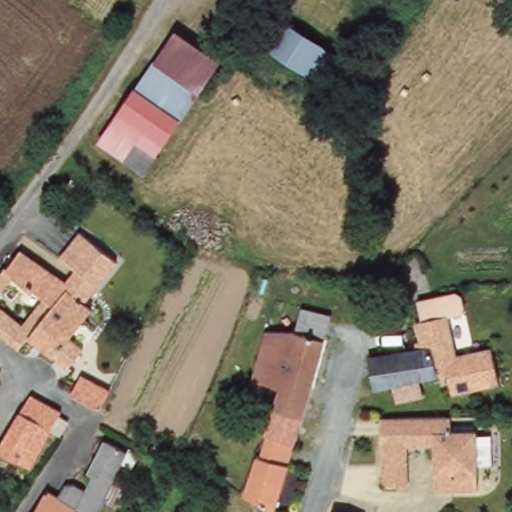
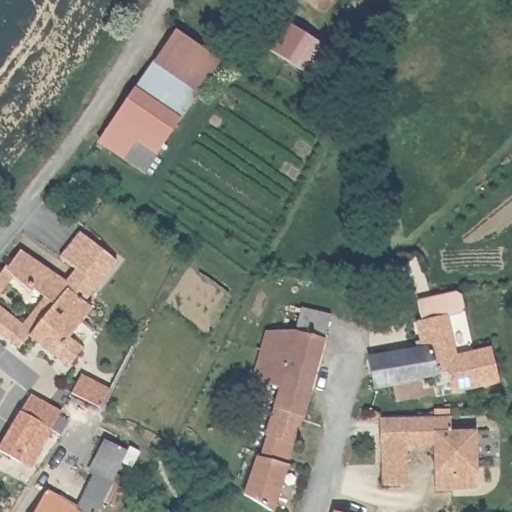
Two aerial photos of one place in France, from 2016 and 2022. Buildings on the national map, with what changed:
unchanged [(332,54),(317,82),(256,54),(272,16),(332,54)]
unchanged [(219,58),(218,60),(199,96),(153,63),(175,30),(219,58)]
unchanged [(180,124),(178,122),(133,92),(153,63),(199,96),(180,124)]
unchanged [(178,122),(161,146),(118,115),(133,92),(178,122)]
unchanged [(164,147),(144,177),(97,145),(118,115),(161,146),(164,147)]
unchanged [(65,288),(63,286),(66,281),(65,280),(74,268),(59,256),(74,237),(80,231),(116,261),(113,265),(86,304),(65,288)]
unchanged [(5,271),(18,250),(20,252),(65,280),(66,281),(63,286),(65,288),(37,326),(29,337),(27,340),(20,348),(19,350),(0,336),(1,335),(1,334),(0,333),(0,309),(23,328),(45,301),(34,292),(33,289),(15,277),(9,285),(0,296),(0,277),(5,271)]
unchanged [(70,338),(84,349),(69,367),(29,337),(37,326),(65,288),(86,304),(92,309),(94,310),(70,338)]
unchanged [(419,362),(415,344),(420,343),(414,316),(445,309),(454,350),(489,342),(497,377),(451,388),(450,383),(441,386),(426,388),(419,362)]
unchanged [(266,436),(275,408),(281,389),(268,386),(262,407),(247,403),(268,333),(296,332),(298,332),(303,320),(326,326),(326,340),(303,419),(295,446),(266,436)]
unchanged [(423,381),(376,392),(370,361),(384,359),(416,353),(423,381)]
unchanged [(87,386),(81,397),(60,386),(59,386),(66,373),(87,386)]
unchanged [(27,474),(18,468),(12,478),(0,472),(0,444),(2,441),(26,403),(31,396),(62,412),(60,417),(69,422),(61,436),(52,431),(51,432),(49,435),(40,453),(31,448),(24,457),(33,462),(27,474)]
unchanged [(382,492),(382,470),(381,452),(380,452),(380,443),(379,424),(449,422),(449,437),(475,437),(477,495),(434,497),(433,451),(404,452),(404,469),(404,492),(382,492)]
unchanged [(47,492),(59,498),(66,485),(74,484),(87,490),(94,476),(89,473),(91,469),(90,468),(105,442),(127,454),(116,473),(130,481),(126,488),(114,482),(99,512),(36,512),(47,492)]
unchanged [(274,512),(273,512),(245,495),(259,455),(289,467),(274,512)]

